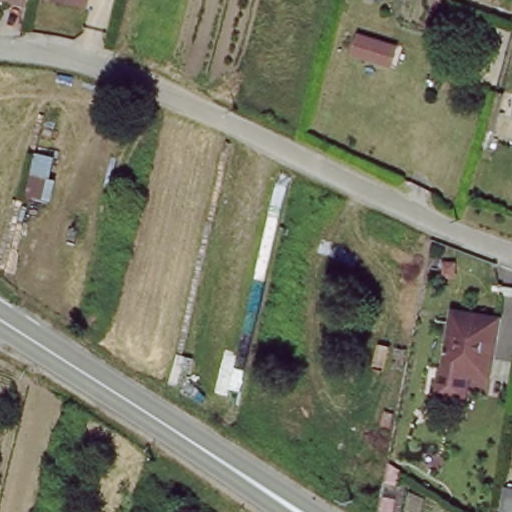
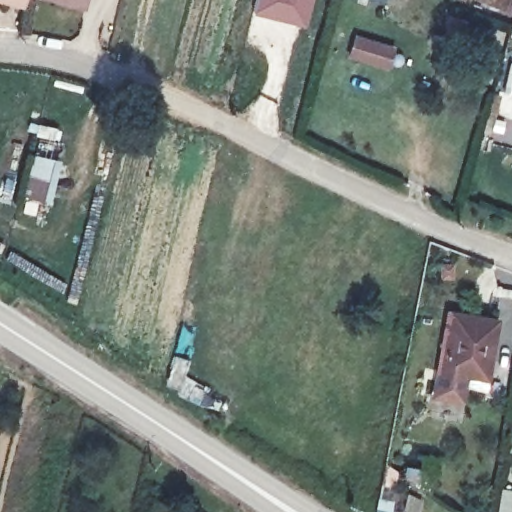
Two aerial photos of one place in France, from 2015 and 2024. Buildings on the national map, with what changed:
unchanged [(24,5),(4,0),(25,0),(24,5)]
unchanged [(83,6),(57,0),(85,0),(83,6)]
new [(256,0),(314,0),(306,28),(252,13),(256,0)]
unchanged [(386,68),(350,57),(355,34),(393,44),(386,68)]
unchanged [(495,314),(485,374),(436,366),(446,306),(495,314)]
unchanged [(512,494),(512,512),(506,512),(508,493),(512,494)]

